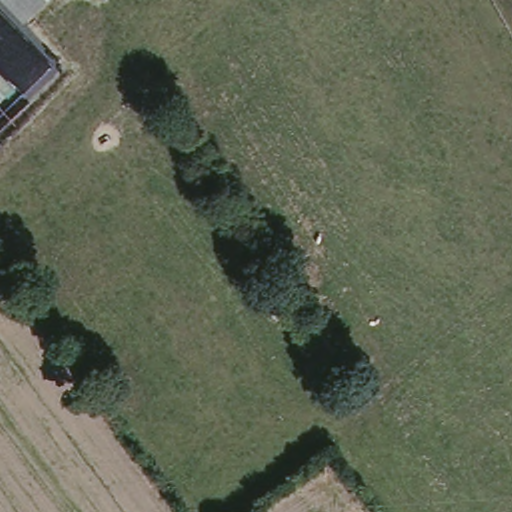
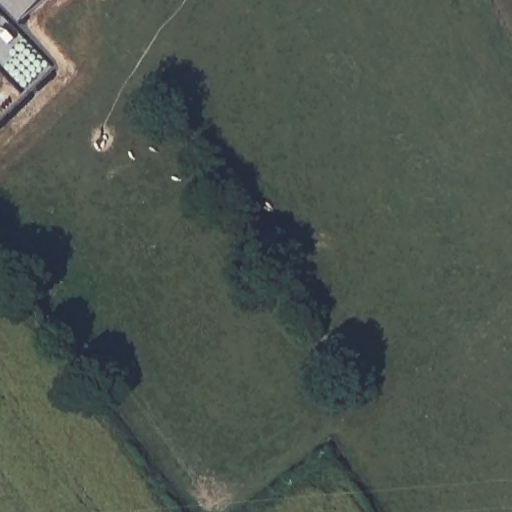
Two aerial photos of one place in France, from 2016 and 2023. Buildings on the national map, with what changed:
unchanged [(22,24),(1,0),(47,0),(22,24)]

